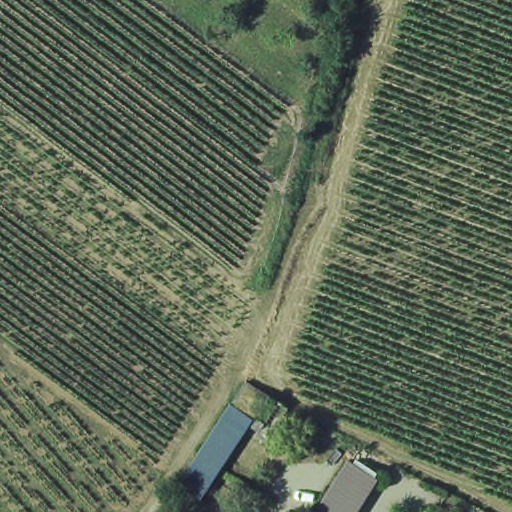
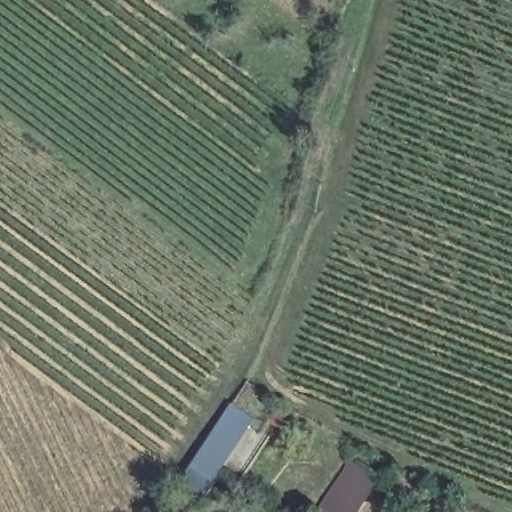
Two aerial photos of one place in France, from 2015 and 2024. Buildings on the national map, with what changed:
unchanged [(180,484),(202,450),(223,418),(241,390),(245,383),(271,397),(257,417),(265,423),(260,432),(247,423),(242,430),(222,462),(199,497),(180,484)]
unchanged [(290,408),(277,427),(267,420),(279,402),(290,408)]
unchanged [(358,503),(333,487),(349,460),(378,477),(362,505),(358,503)]
unchanged [(358,512),(318,512),(333,487),(358,503),(362,505),(358,512)]

